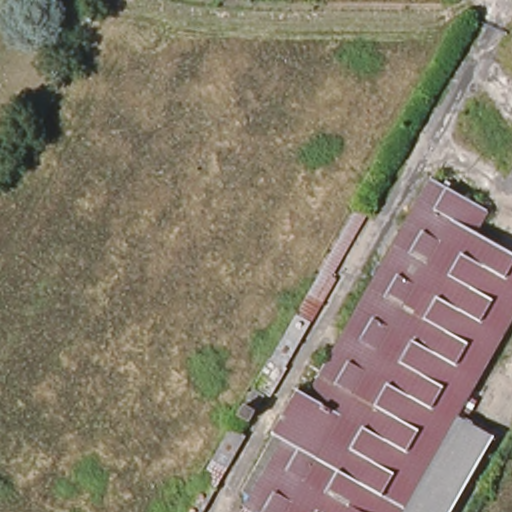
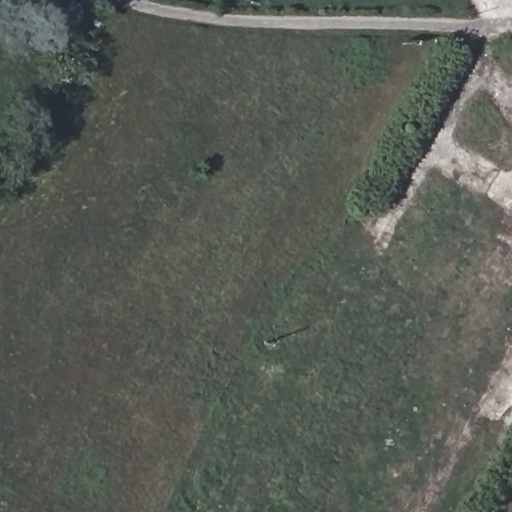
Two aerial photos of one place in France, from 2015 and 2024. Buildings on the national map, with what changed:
demolished [(310,397),(434,182),(491,214),(479,237),(512,256),(512,329),(458,423),(493,444),(454,512),(250,512),(244,509),(250,497),(282,444),(272,437),(299,391),(310,397)]
demolished [(332,272),(267,384),(254,378),(317,264),(329,270),(332,272)]
demolished [(261,387),(248,412),(236,404),(249,379),(261,387)]
demolished [(251,437),(233,468),(214,456),(232,424),(251,437)]
demolished [(209,512),(187,512),(205,479),(221,490),(209,512)]

